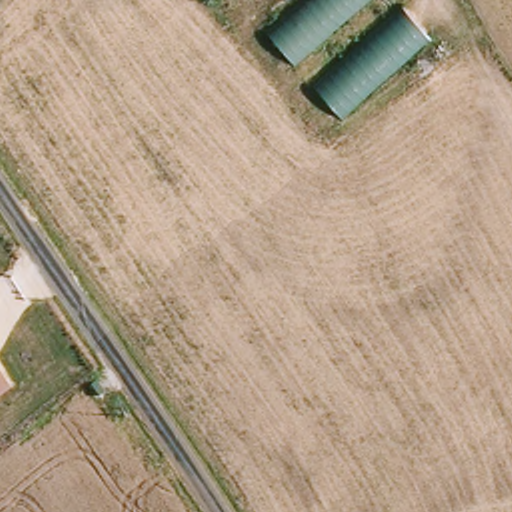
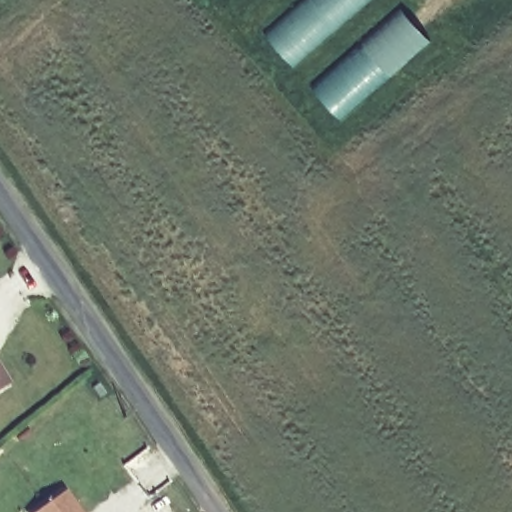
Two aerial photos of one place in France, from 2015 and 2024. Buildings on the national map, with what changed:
unchanged [(266,29),(301,0),(373,0),(297,65),(266,29)]
unchanged [(432,40),(342,118),(315,87),(405,8),(432,40)]
unchanged [(0,388),(0,366),(10,382),(0,388)]
new [(65,489),(80,512),(32,512),(65,489)]

